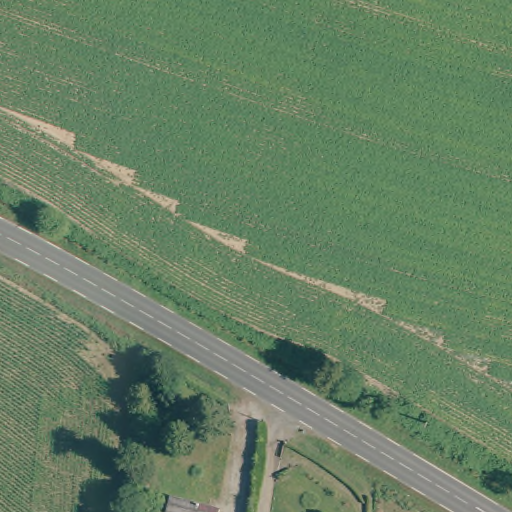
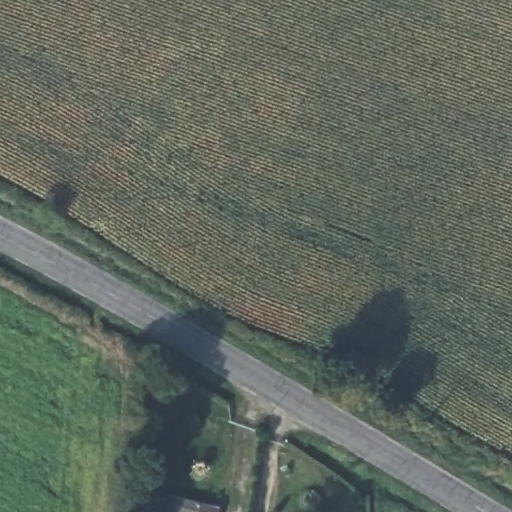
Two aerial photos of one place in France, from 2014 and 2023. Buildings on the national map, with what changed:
unchanged [(214,512),(164,512),(168,500),(214,512)]

